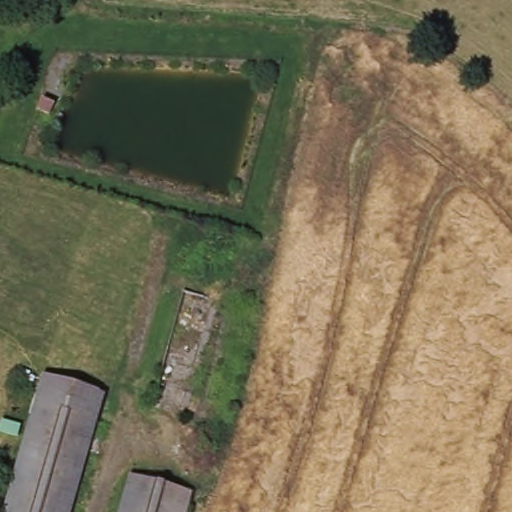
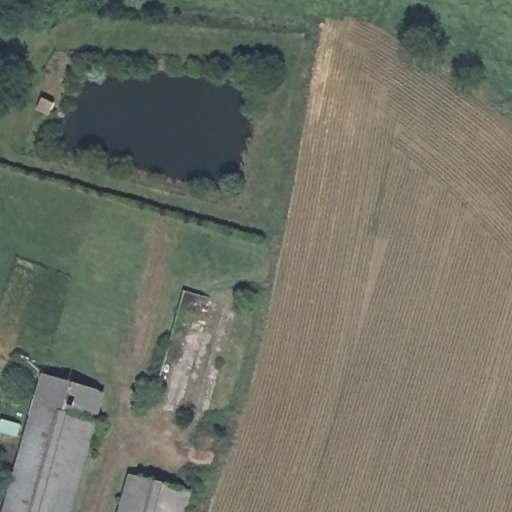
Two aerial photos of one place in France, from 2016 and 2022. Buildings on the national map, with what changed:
unchanged [(39,399),(47,375),(107,392),(101,416),(39,399)]
unchanged [(39,399),(101,416),(71,512),(4,512),(39,399)]
unchanged [(132,476),(196,494),(190,512),(122,512),(132,476)]

